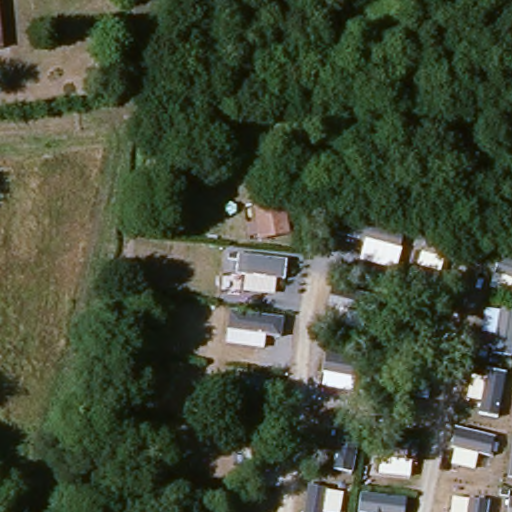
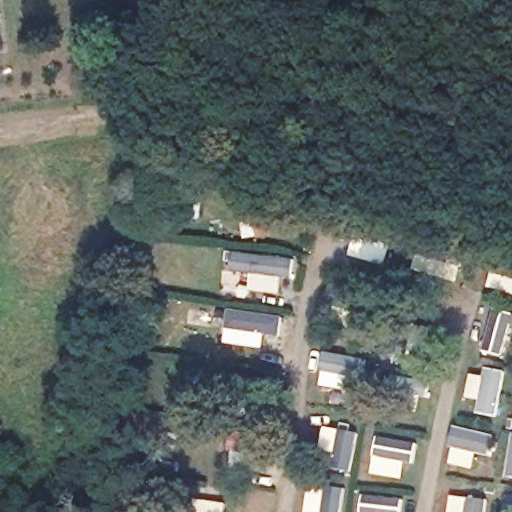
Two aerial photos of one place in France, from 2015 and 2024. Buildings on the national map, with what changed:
unchanged [(3,49),(0,49),(0,17),(3,49)]
unchanged [(293,242),(256,246),(250,206),(283,200),(293,242)]

